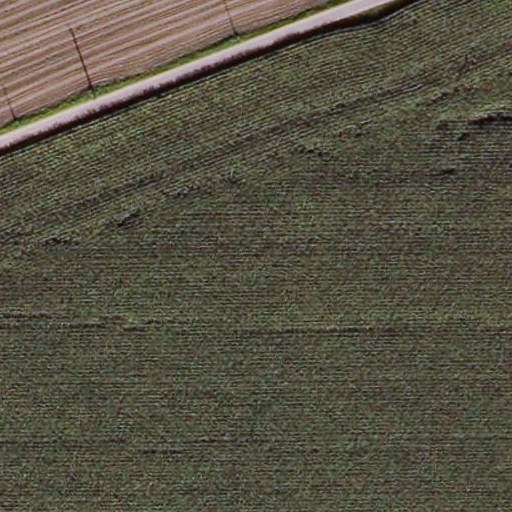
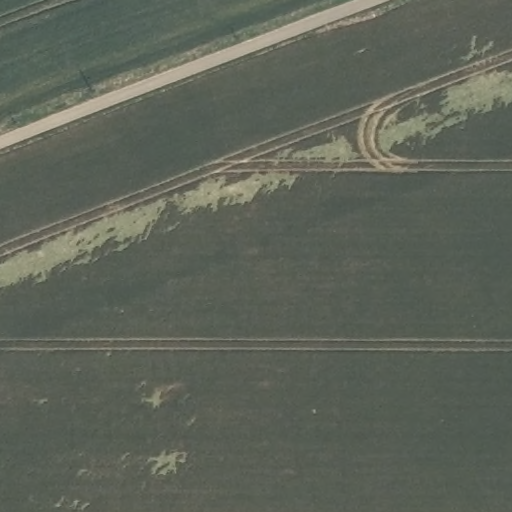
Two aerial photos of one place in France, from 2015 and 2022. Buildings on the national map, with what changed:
[]

